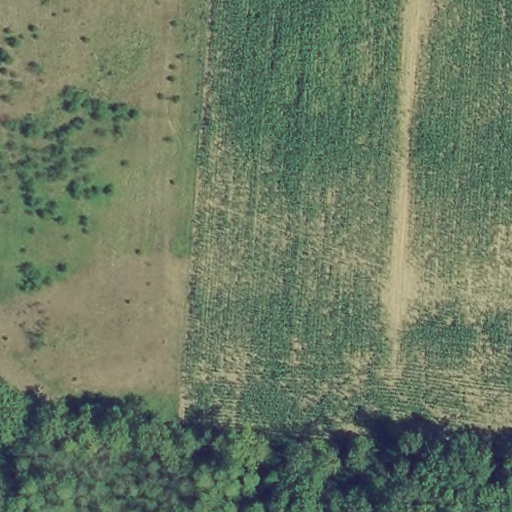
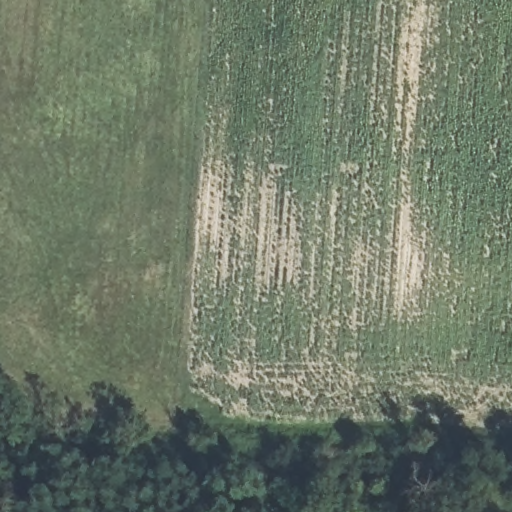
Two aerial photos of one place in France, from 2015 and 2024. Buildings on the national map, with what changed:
[]

